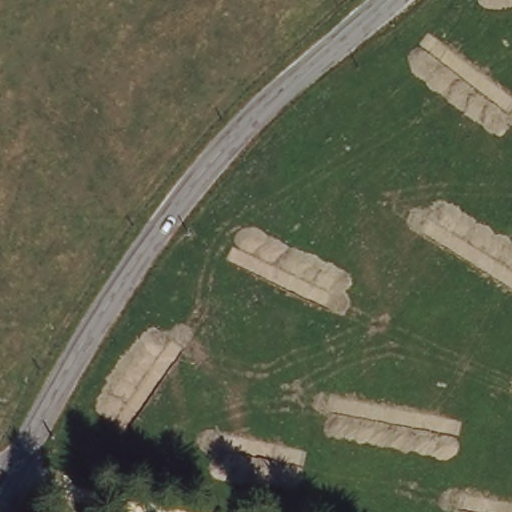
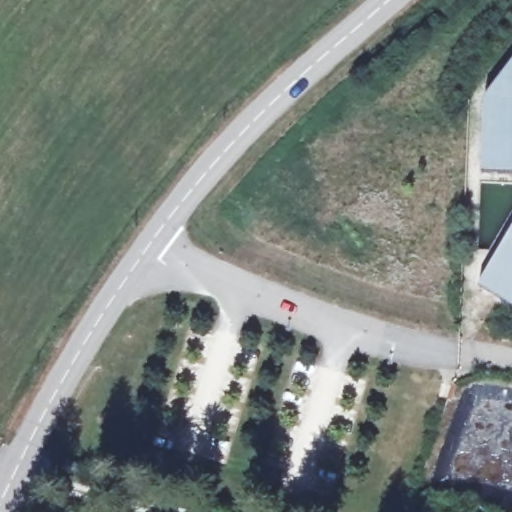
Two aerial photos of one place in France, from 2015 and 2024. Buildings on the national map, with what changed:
new [(478,171),(479,99),(512,56),(512,171),(478,171)]
new [(475,284),(512,221),(512,300),(475,284)]
new [(65,491),(62,501),(45,496),(47,486),(65,491)]

